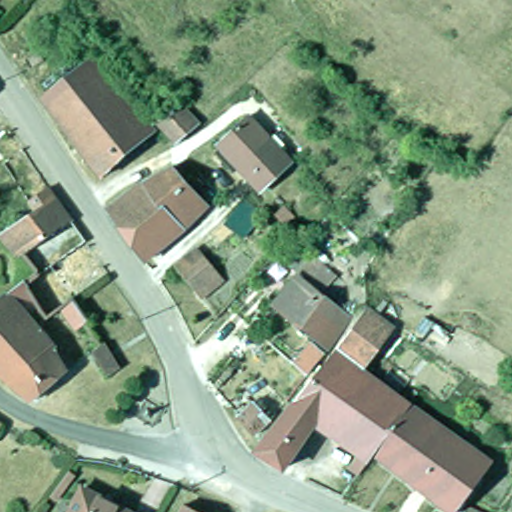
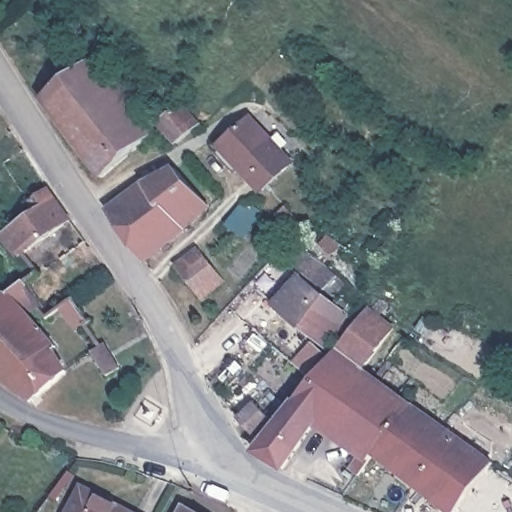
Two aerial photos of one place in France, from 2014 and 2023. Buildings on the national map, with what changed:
unchanged [(95,167),(37,89),(57,72),(87,46),(148,121),(95,167)]
unchanged [(190,114),(168,131),(154,116),(148,110),(170,92),(190,114)]
unchanged [(257,184),(251,178),(214,140),(244,109),(287,156),(257,184)]
unchanged [(136,256),(102,205),(137,177),(167,161),(200,199),(174,226),(136,256)]
unchanged [(63,212),(14,248),(10,251),(0,239),(0,224),(28,203),(22,194),(42,180),(63,212)]
unchanged [(255,222),(240,242),(223,230),(233,216),(241,204),(258,216),(255,222)]
unchanged [(282,227),(273,219),(282,211),(291,220),(282,227)]
unchanged [(220,273),(198,292),(172,261),(195,242),(220,273)]
unchanged [(320,345),(265,302),(290,272),(301,258),(323,276),(312,289),(342,313),(320,345)]
unchanged [(45,338),(58,358),(22,390),(0,369),(0,281),(5,277),(15,269),(30,292),(20,301),(48,336),(45,338)]
unchanged [(72,305),(87,325),(82,328),(75,333),(60,313),(72,305)]
unchanged [(247,449),(360,307),(363,308),(368,312),(387,323),(356,365),(398,396),(402,390),(407,394),(405,397),(402,400),(401,402),(367,451),(357,463),(355,467),(351,472),(342,466),(353,451),(311,420),(277,464),(247,449)]
unchanged [(97,350),(102,347),(117,371),(103,380),(88,356),(97,350)]
unchanged [(367,451),(401,402),(402,400),(405,397),(437,421),(485,457),(447,510),(367,451)]
unchanged [(72,482),(122,510),(122,511),(125,512),(55,512),(60,503),(72,482)]
unchanged [(487,512),(457,512),(463,500),(487,512)]
unchanged [(176,512),(181,503),(196,512),(176,512)]

